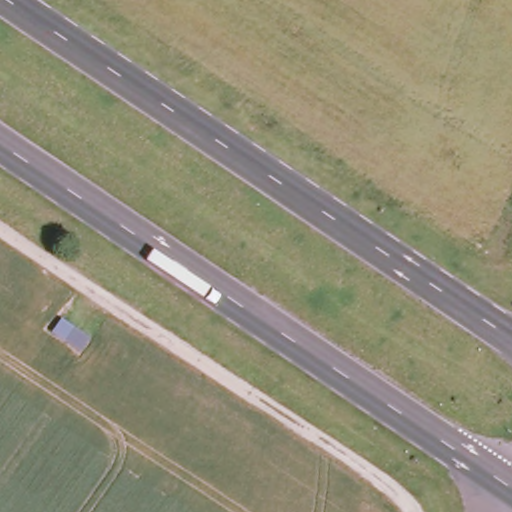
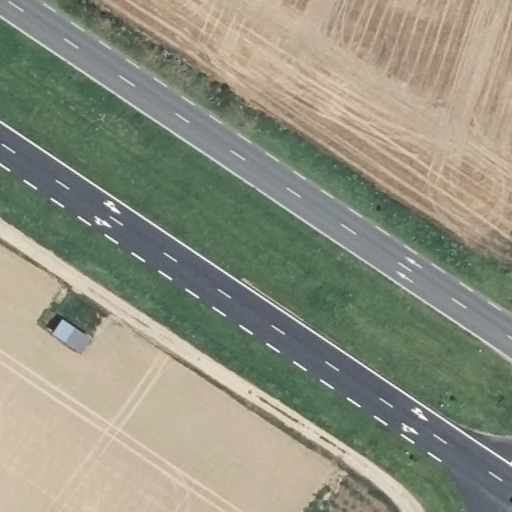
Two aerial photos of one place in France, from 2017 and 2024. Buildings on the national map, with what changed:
unchanged [(95,339),(83,353),(53,335),(64,320),(95,339)]

